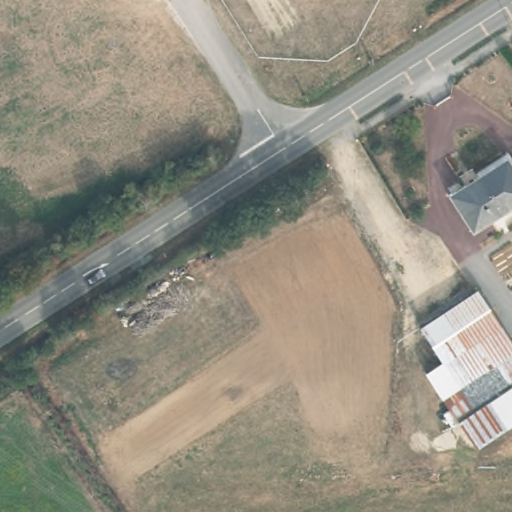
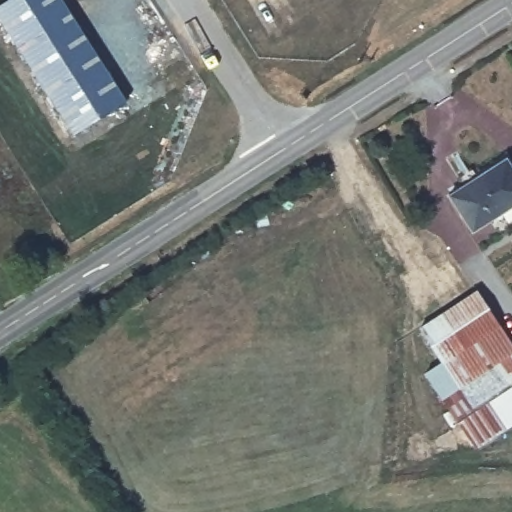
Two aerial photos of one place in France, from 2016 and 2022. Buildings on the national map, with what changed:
new [(127,101),(74,135),(0,19),(0,5),(7,0),(63,0),(127,101)]
unchanged [(512,166),(512,201),(471,226),(451,196),(508,160),(512,166)]
unchanged [(443,400),(460,389),(422,329),(468,300),(479,293),(510,340),(512,342),(512,427),(476,451),(443,400)]

